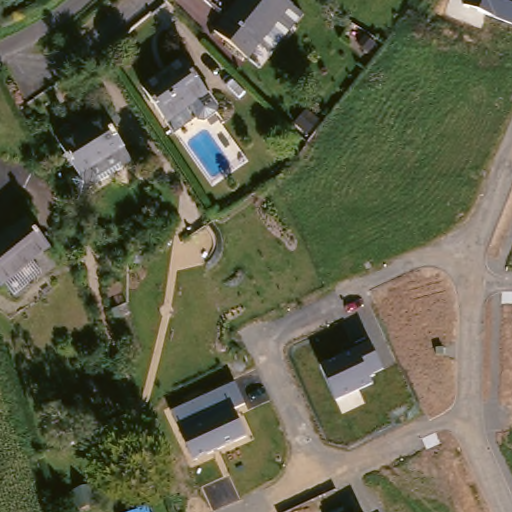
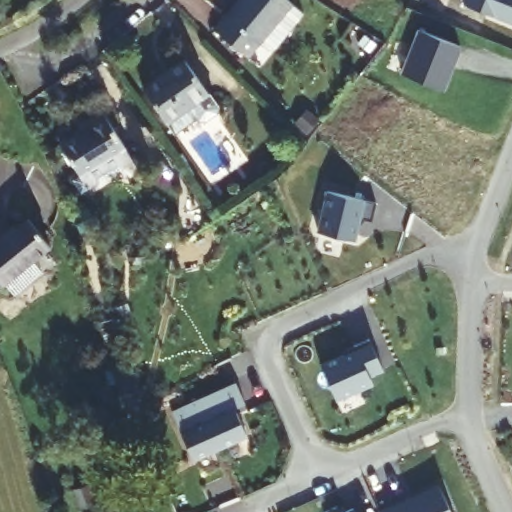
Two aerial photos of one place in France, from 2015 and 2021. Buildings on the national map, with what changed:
unchanged [(281,43),(269,33),(247,60),(211,31),(235,0),(279,0),(301,19),(281,43)]
unchanged [(464,5),(466,0),(512,0),(512,23),(464,5)]
new [(463,47),(445,92),(401,74),(418,30),(463,47)]
unchanged [(215,105),(175,135),(141,88),(181,59),(215,105)]
unchanged [(136,152),(93,179),(66,135),(94,118),(90,112),(106,103),(136,152)]
new [(365,201),(375,204),(371,220),(362,218),(356,242),(318,234),(327,192),(365,201)]
unchanged [(14,285),(1,272),(0,273),(0,231),(25,204),(48,226),(28,247),(39,257),(14,285)]
unchanged [(370,377),(373,385),(338,400),(321,366),(371,342),(384,370),(370,377)]
unchanged [(232,410),(245,437),(194,459),(174,411),(235,382),(245,404),(232,410)]
new [(451,512),(380,512),(380,511),(439,485),(451,512)]

